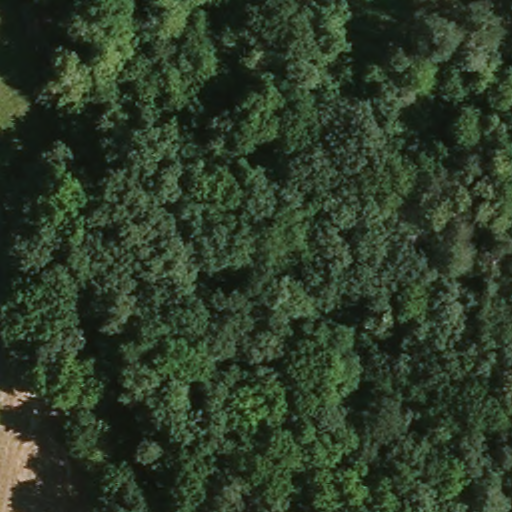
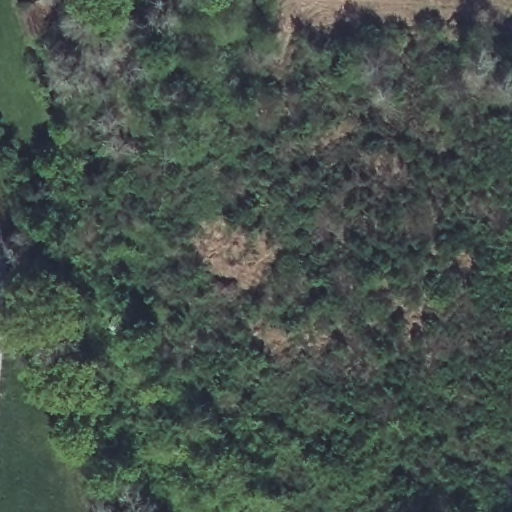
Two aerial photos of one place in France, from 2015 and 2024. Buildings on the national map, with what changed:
unchanged [(50,19),(58,43),(37,49),(28,28),(50,19)]

